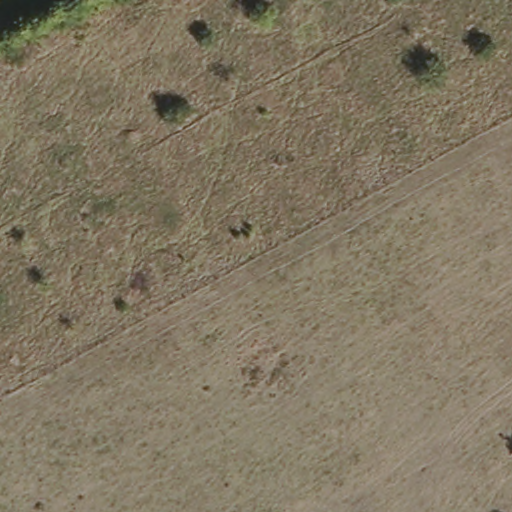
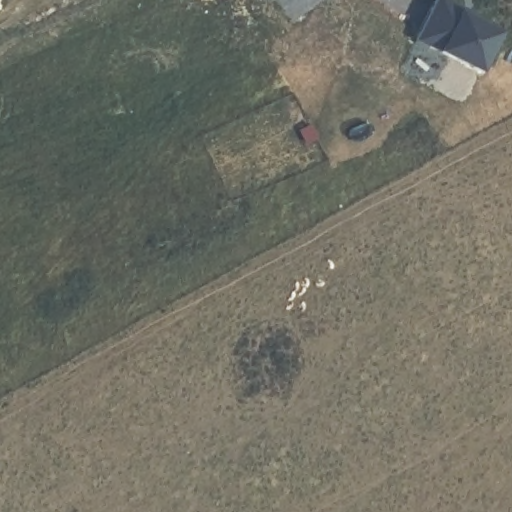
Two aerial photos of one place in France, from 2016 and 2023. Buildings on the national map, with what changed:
new [(415,39),(432,0),(449,0),(461,6),(457,12),(501,34),(480,74),(415,39)]

